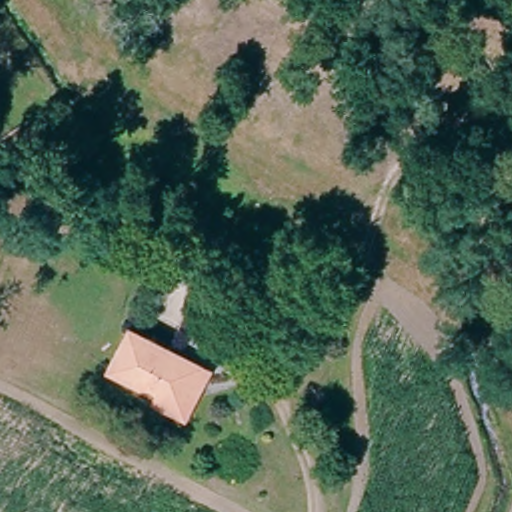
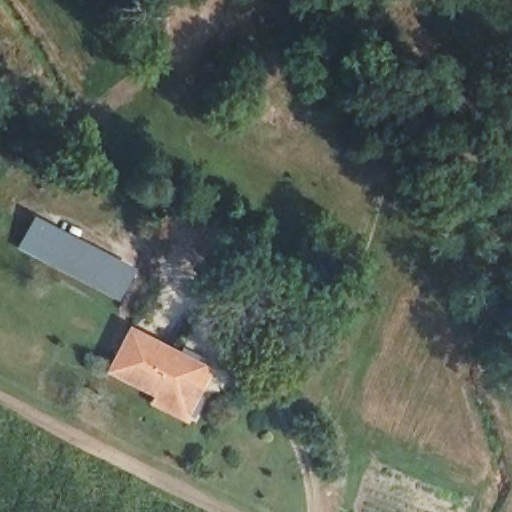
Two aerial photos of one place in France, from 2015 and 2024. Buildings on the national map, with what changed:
new [(33,216),(134,268),(117,300),(14,248),(33,216)]
unchanged [(187,426),(150,410),(155,398),(108,377),(126,336),(204,371),(197,390),(201,393),(187,426)]

